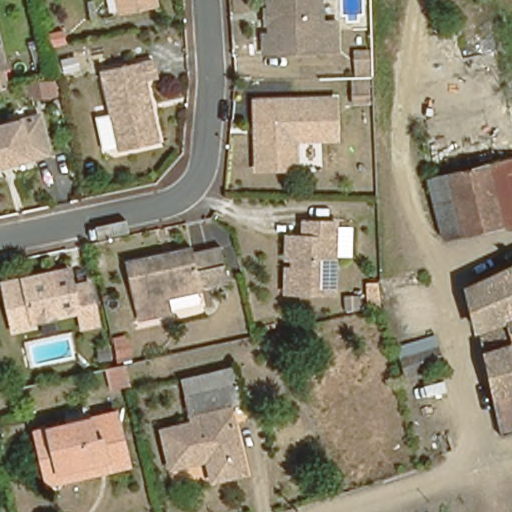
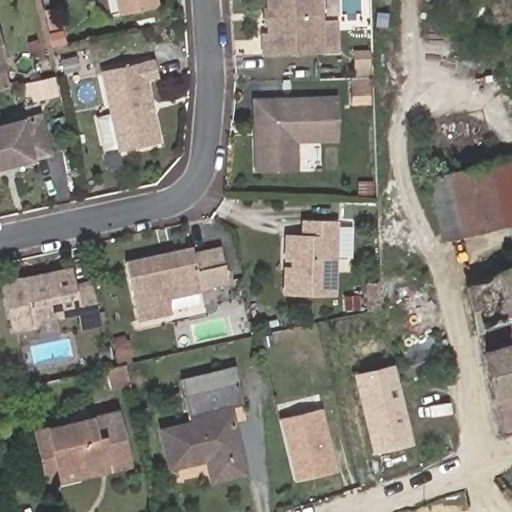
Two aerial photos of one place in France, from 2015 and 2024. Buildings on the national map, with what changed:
unchanged [(123,18),(118,0),(159,0),(161,11),(123,18)]
unchanged [(324,0),(327,57),(273,59),(271,0),(324,0)]
unchanged [(66,49),(69,61),(56,64),(54,52),(66,49)]
unchanged [(0,75),(0,54),(4,70),(5,74),(0,75)]
unchanged [(103,71),(159,60),(162,81),(152,83),(164,143),(119,153),(119,150),(105,153),(98,121),(113,119),(103,71)]
unchanged [(49,76),(53,89),(39,92),(36,80),(49,76)]
unchanged [(333,104),(334,144),(294,145),(295,170),(258,171),(256,106),(333,104)]
unchanged [(0,173),(0,130),(39,121),(49,161),(0,173)]
unchanged [(448,236),(432,173),(512,153),(512,172),(463,183),(474,230),(448,236)]
unchanged [(474,230),(463,183),(512,172),(512,221),(474,230)]
unchanged [(289,240),(305,240),(305,230),(340,230),(339,301),(289,300),(289,240)]
unchanged [(213,250),(219,284),(191,289),(192,293),(160,299),(163,314),(133,320),(120,262),(184,250),(185,256),(213,250)]
unchanged [(466,284),(512,266),(512,426),(500,431),(466,284)]
unchanged [(10,329),(1,285),(68,269),(71,286),(87,283),(94,309),(10,329)]
unchanged [(405,374),(400,355),(397,343),(434,332),(438,345),(442,365),(405,374)]
unchanged [(187,401),(180,375),(232,361),(239,385),(187,401)]
new [(413,445),(373,455),(353,374),(393,364),(413,445)]
unchanged [(99,370),(112,367),(118,366),(123,386),(103,390),(99,370)]
unchanged [(237,454),(213,461),(205,440),(173,453),(165,427),(192,419),(187,401),(239,385),(243,394),(229,398),(237,421),(245,451),(237,454)]
demolished [(334,414),(382,398),(398,447),(383,452),(349,464),(334,414)]
new [(337,471),(294,482),(279,419),(322,408),(337,471)]
unchanged [(114,413),(128,465),(106,470),(105,461),(55,471),(45,429),(114,413)]
unchanged [(55,471),(105,461),(106,470),(45,484),(34,432),(45,429),(55,471)]

